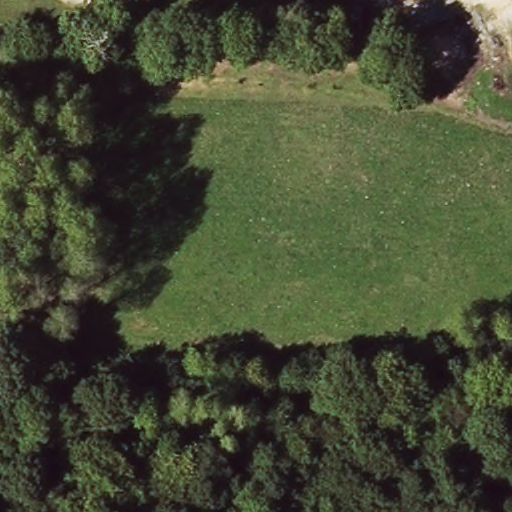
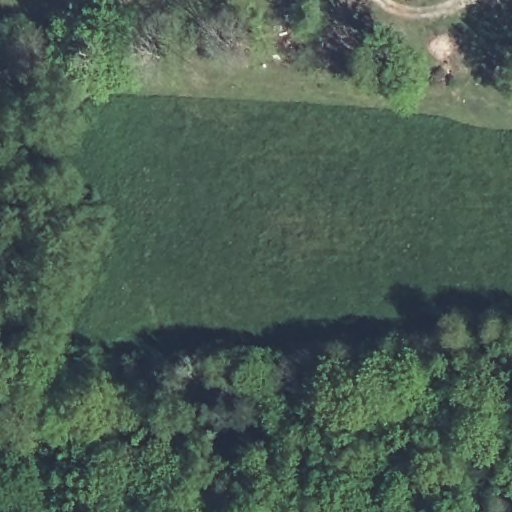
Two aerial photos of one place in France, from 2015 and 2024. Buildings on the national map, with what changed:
unchanged [(123,0),(124,0),(123,1),(123,0)]

